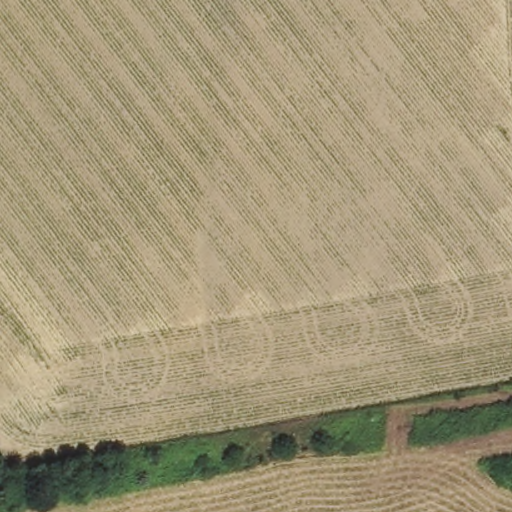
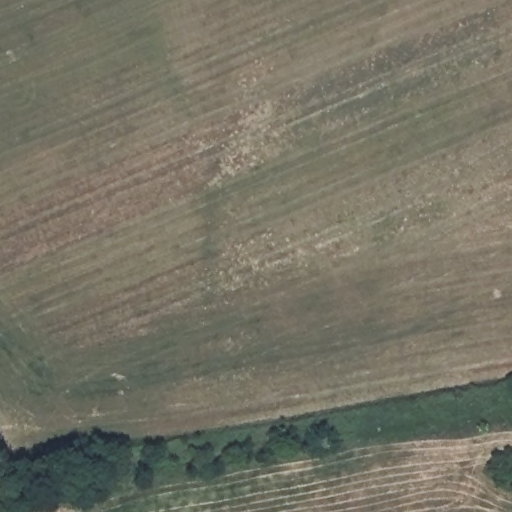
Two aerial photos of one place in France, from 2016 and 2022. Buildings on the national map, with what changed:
[]

